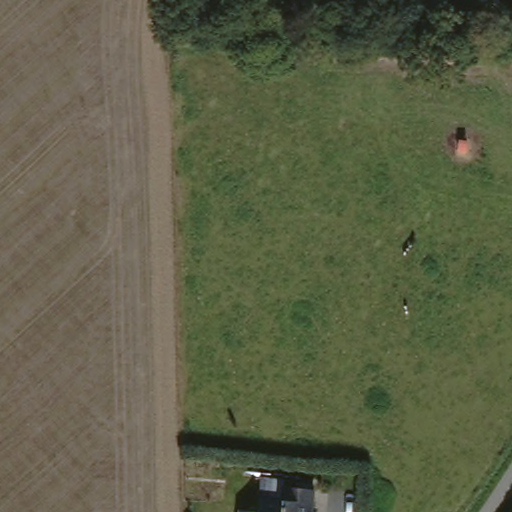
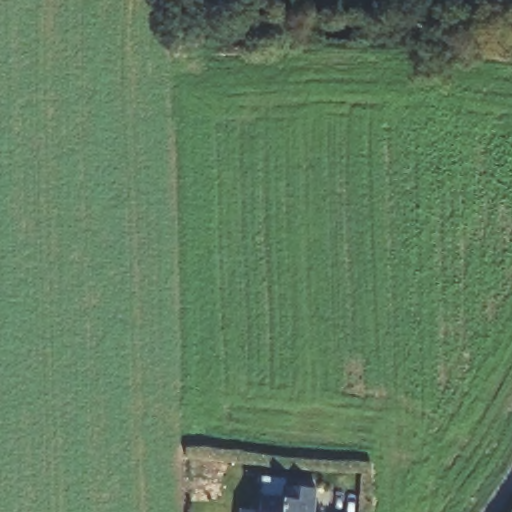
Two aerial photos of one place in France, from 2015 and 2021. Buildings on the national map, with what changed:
unchanged [(259,507),(283,505),(281,492),(311,490),(312,490),(314,512),(259,512),(259,507)]

